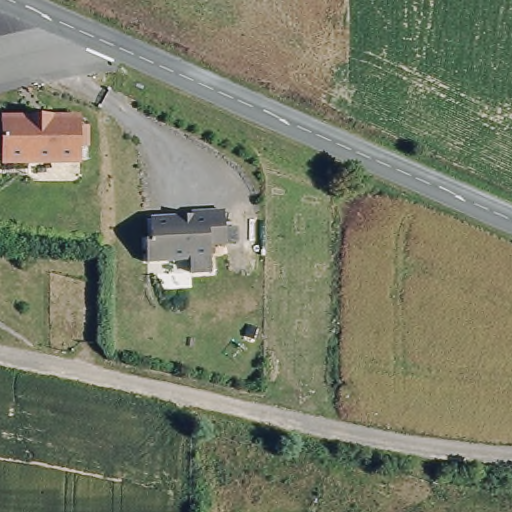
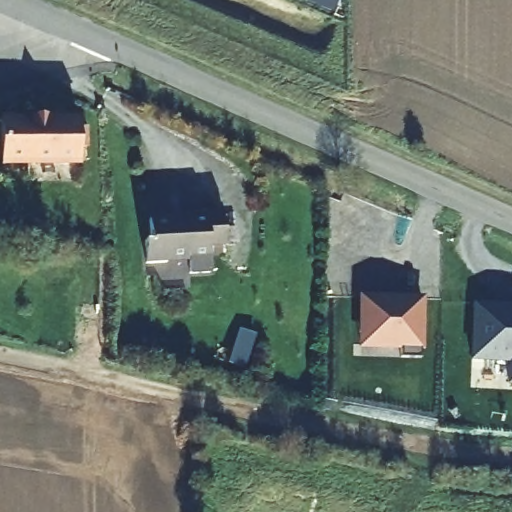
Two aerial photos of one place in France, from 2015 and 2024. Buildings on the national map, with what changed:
unchanged [(80,161),(2,160),(5,113),(80,115),(80,161)]
unchanged [(227,252),(209,253),(210,275),(189,276),(189,263),(153,266),(150,216),(225,209),(227,252)]
new [(425,296),(422,358),(399,357),(399,351),(357,350),(359,295),(425,296)]
new [(507,312),(512,312),(512,357),(472,357),(472,304),(507,304),(507,312)]

